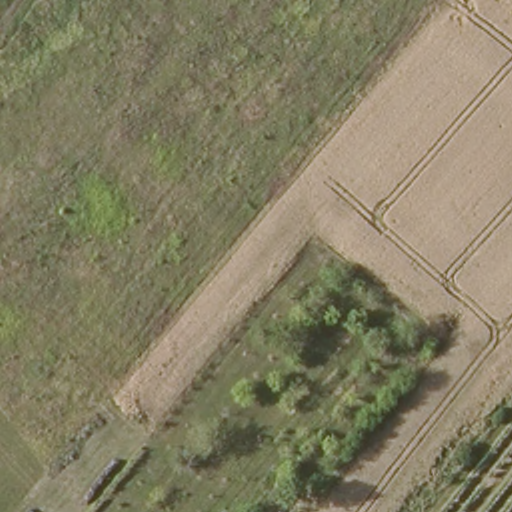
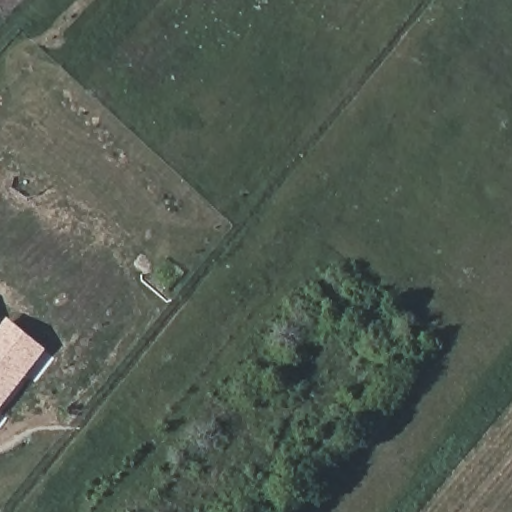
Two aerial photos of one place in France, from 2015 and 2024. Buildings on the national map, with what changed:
new [(12,320),(50,352),(0,413),(0,334),(12,320)]

